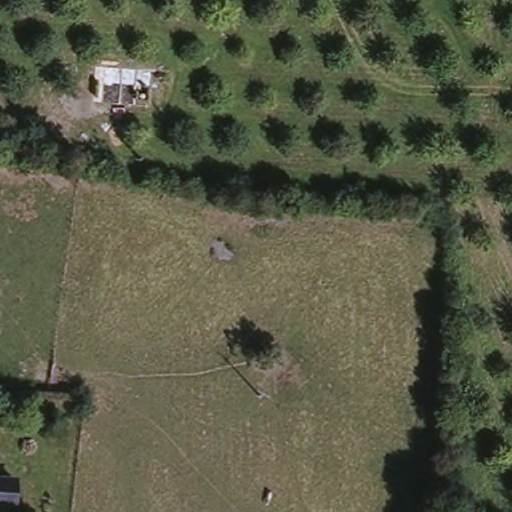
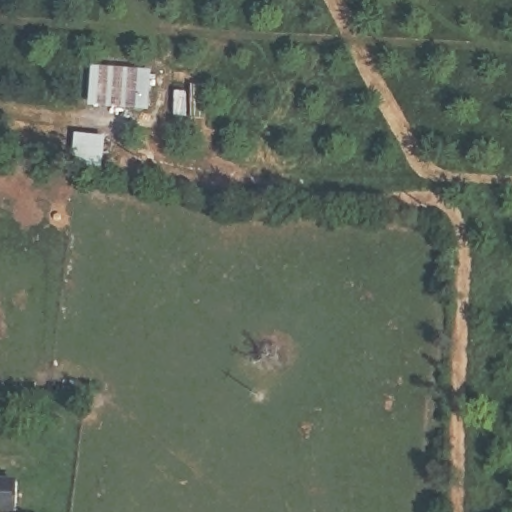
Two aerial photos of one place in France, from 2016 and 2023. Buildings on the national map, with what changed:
unchanged [(147,88),(143,103),(89,100),(90,84),(147,88)]
unchanged [(14,512),(0,512),(0,484),(17,486),(14,512)]

